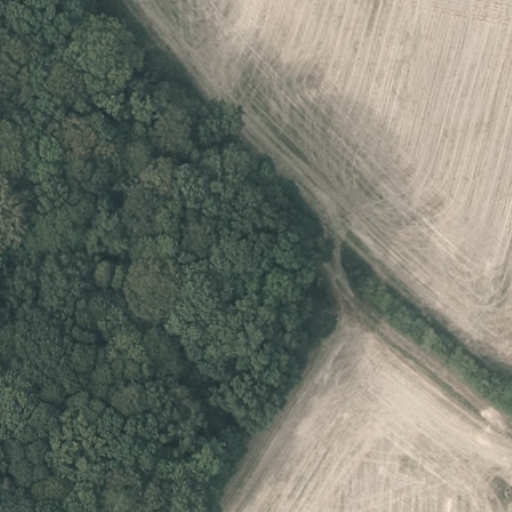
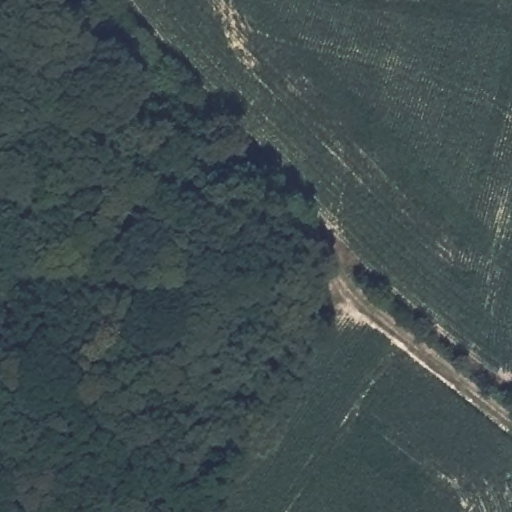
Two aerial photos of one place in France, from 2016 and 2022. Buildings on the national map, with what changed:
[]

